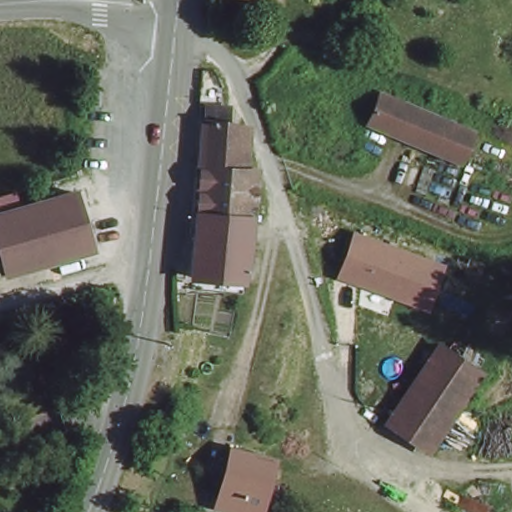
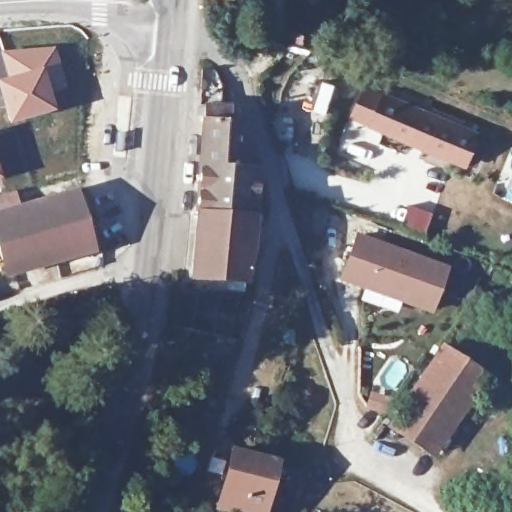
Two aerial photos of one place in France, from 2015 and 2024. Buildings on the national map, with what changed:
new [(6,76),(0,54),(0,52),(55,46),(67,89),(51,93),(56,110),(8,125),(0,99),(0,78),(6,76)]
unchanged [(478,130),(466,161),(371,123),(383,91),(478,130)]
unchanged [(199,102),(220,103),(221,123),(238,126),(232,174),(243,177),(246,177),(246,184),(243,220),(189,216),(199,102)]
new [(2,178),(0,178),(0,171),(2,178)]
unchanged [(0,262),(0,209),(74,189),(86,233),(89,247),(75,251),(52,257),(44,257),(41,260),(40,261),(35,261),(3,270),(0,262)]
unchanged [(243,220),(238,278),(204,276),(189,275),(183,275),(189,216),(243,220)]
unchanged [(357,235),(451,268),(434,316),(339,282),(357,235)]
unchanged [(485,380),(432,453),(393,425),(443,352),(485,380)]
unchanged [(275,464),(260,512),(214,512),(232,453),(275,464)]

